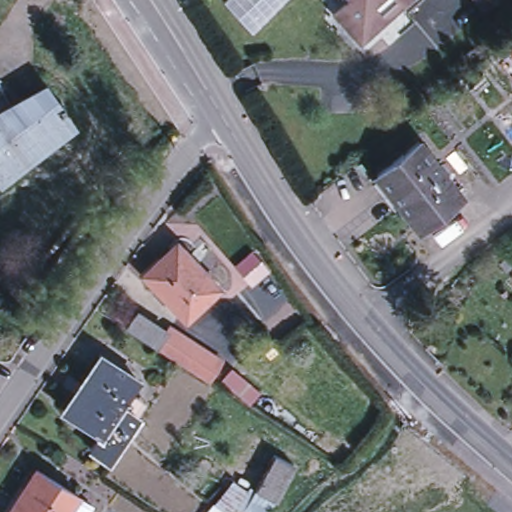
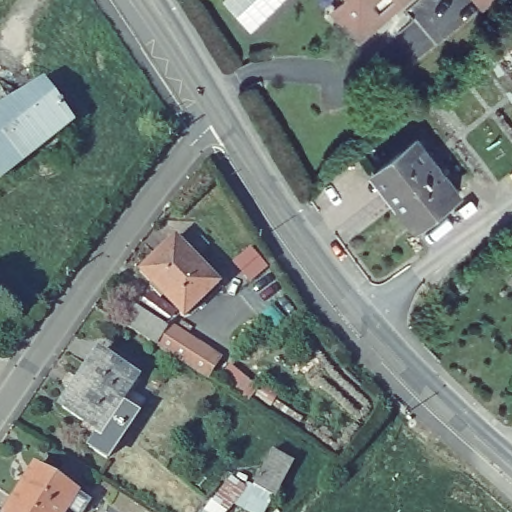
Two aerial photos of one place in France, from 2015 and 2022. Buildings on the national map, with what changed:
unchanged [(332,11),(345,0),(365,0),(341,20),(332,11)]
unchanged [(341,20),(365,0),(403,0),(400,2),(386,16),(359,39),(341,20)]
unchanged [(474,0),(500,0),(485,12),(474,0)]
unchanged [(10,107),(10,105),(45,85),(57,100),(60,98),(72,125),(41,140),(29,149),(5,176),(0,179),(0,110),(4,110),(10,107)]
unchanged [(419,140),(460,192),(418,226),(376,173),(419,140)]
unchanged [(218,284),(184,316),(142,272),(176,239),(218,284)]
unchanged [(126,325),(136,310),(165,330),(168,325),(219,358),(207,377),(156,345),(126,325)]
unchanged [(130,390),(146,401),(136,416),(107,458),(89,447),(99,432),(62,407),(100,352),(137,378),(130,390)]
unchanged [(297,461),(276,497),(269,512),(255,512),(237,500),(229,512),(205,512),(216,497),(234,473),(261,483),(276,450),(297,461)]
unchanged [(5,511),(0,508),(0,507),(19,477),(24,481),(36,462),(77,488),(91,497),(81,512),(76,512),(65,506),(61,512),(7,512),(5,511)]

